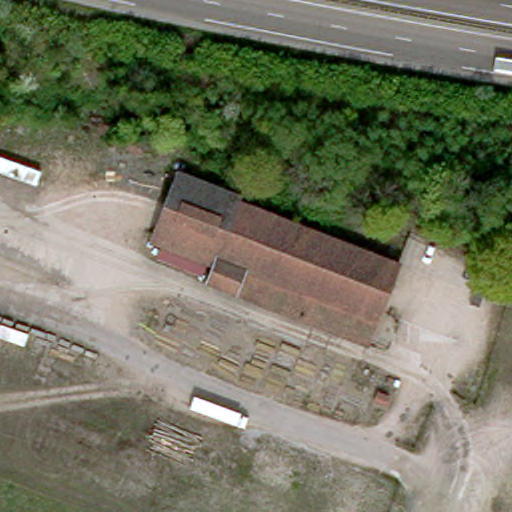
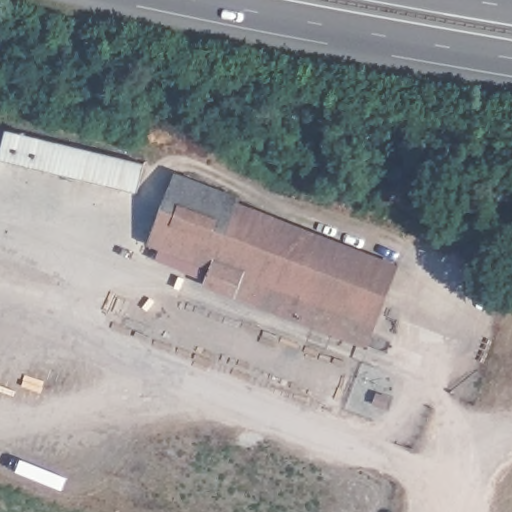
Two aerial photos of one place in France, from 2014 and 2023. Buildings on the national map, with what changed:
new [(144,163),(138,192),(0,159),(6,129),(144,163)]
unchanged [(245,192),(243,196),(401,258),(370,338),(211,274),(217,258),(155,234),(182,166),(245,192)]

